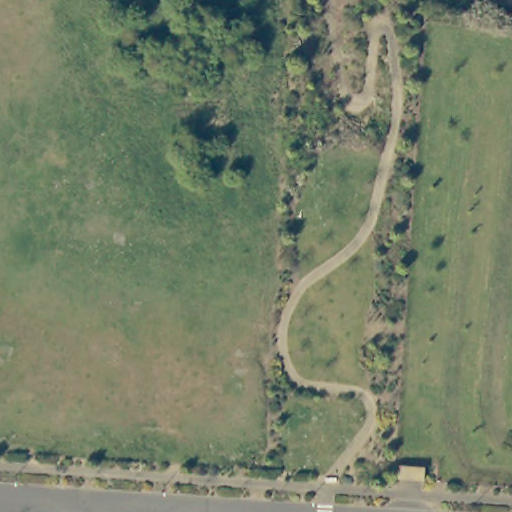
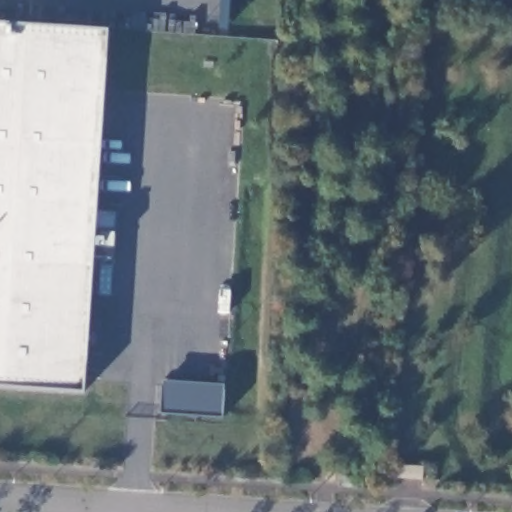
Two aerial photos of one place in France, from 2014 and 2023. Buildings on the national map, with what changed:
new [(82,391),(0,386),(0,22),(108,29),(82,391)]
new [(225,384),(222,416),(161,413),(164,380),(225,384)]
unchanged [(425,467),(424,480),(398,478),(399,465),(425,467)]

